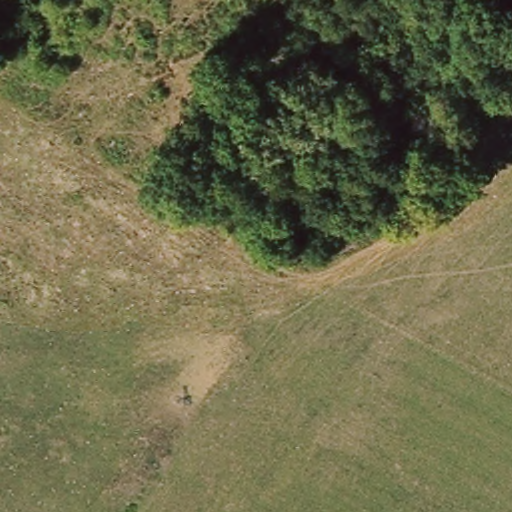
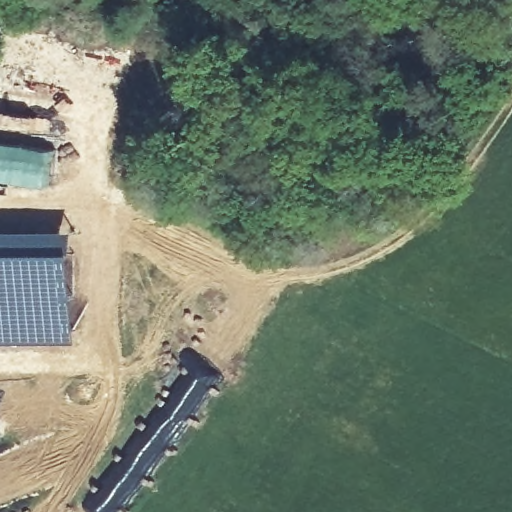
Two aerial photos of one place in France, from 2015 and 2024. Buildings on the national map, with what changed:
new [(72,236),(72,335),(0,336),(0,237),(72,236)]

